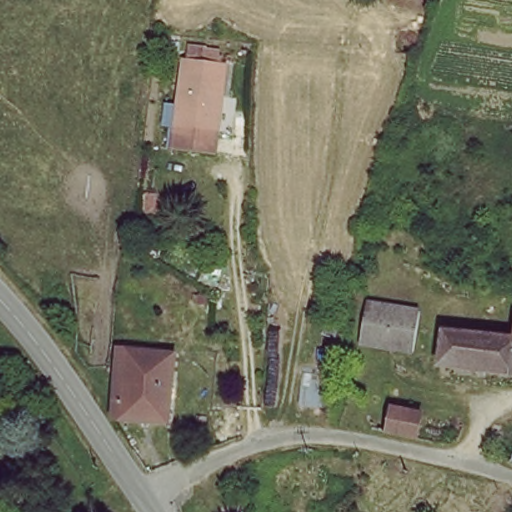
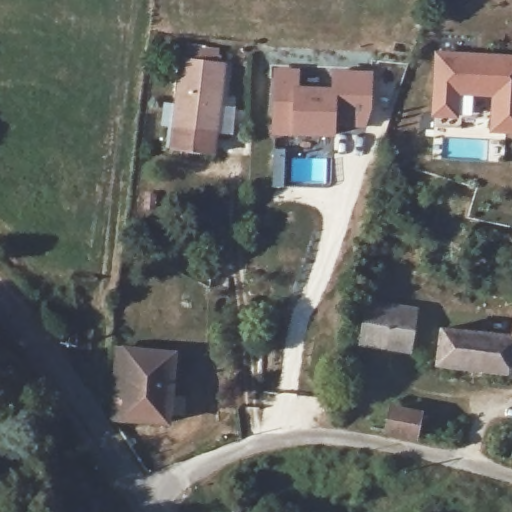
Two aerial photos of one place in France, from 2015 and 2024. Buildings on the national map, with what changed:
new [(492,97),(462,95),(459,120),(432,117),(434,51),(512,54),(512,134),(491,133),(492,97)]
unchanged [(222,70),(214,150),(172,147),(178,64),(222,70)]
new [(273,67),(300,69),(299,86),(331,87),(333,70),(373,71),(366,129),(336,127),(336,137),(293,137),(272,137),(273,67)]
unchanged [(418,314),(414,348),(358,345),(359,310),(418,314)]
unchanged [(495,339),(497,326),(512,328),(512,376),(441,367),(445,331),(495,339)]
unchanged [(120,348),(183,352),(174,422),(116,422),(120,348)]
unchanged [(392,410),(423,415),(419,440),(389,433),(392,410)]

